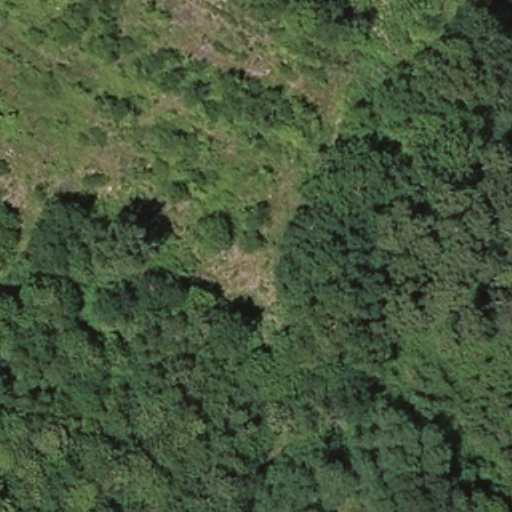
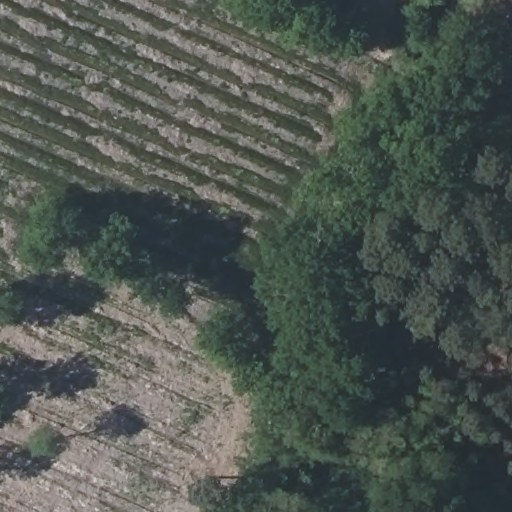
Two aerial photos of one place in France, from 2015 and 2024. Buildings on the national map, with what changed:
[]

